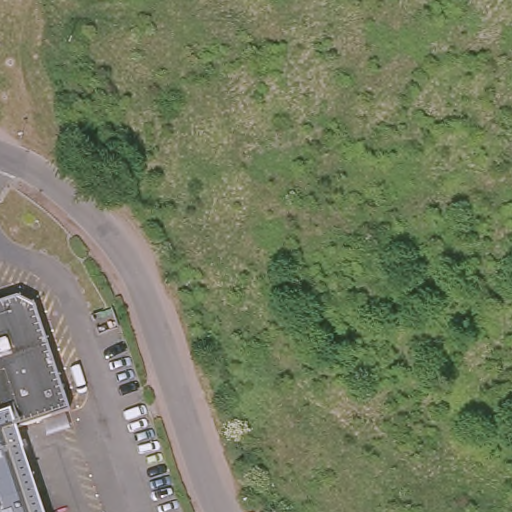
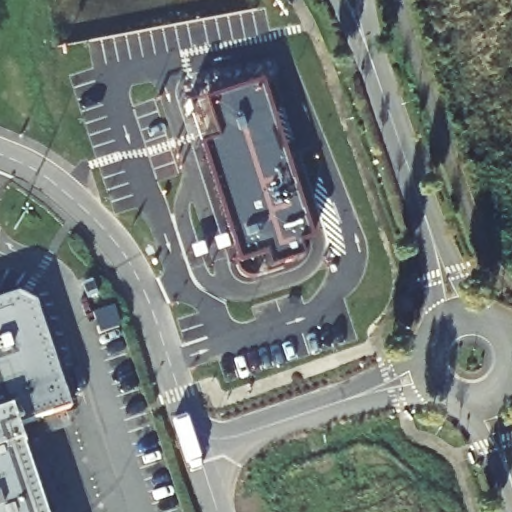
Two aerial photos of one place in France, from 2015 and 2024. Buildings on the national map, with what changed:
new [(311,240),(297,246),(300,258),(268,267),(264,254),(238,264),(198,145),(215,140),(203,101),(260,84),(311,240)]
unchanged [(0,297),(10,294),(31,305),(65,411),(12,428),(40,512),(0,512),(0,297)]

